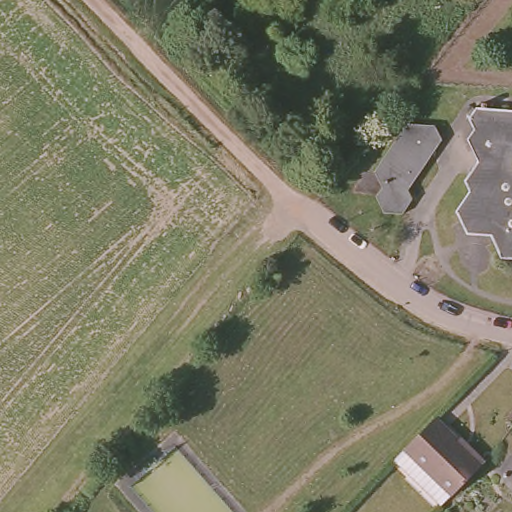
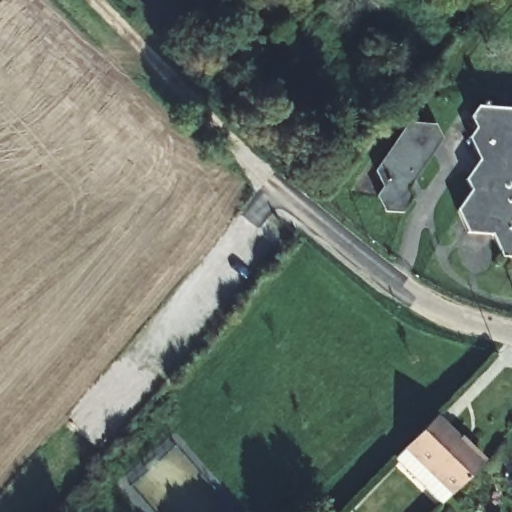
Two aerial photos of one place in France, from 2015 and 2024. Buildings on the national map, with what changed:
unchanged [(473,108),(475,103),(479,105),(482,102),(512,106),(512,257),(498,257),(490,233),(467,233),(460,211),(475,191),(470,180),(485,160),(478,136),(480,124),(473,108)]
unchanged [(385,187),(377,173),(406,124),(432,129),(442,144),(410,194),(415,203),(407,217),(388,210),(380,194),(385,187)]
unchanged [(428,422),(437,412),(487,460),(456,491),(407,444),(428,422)]

